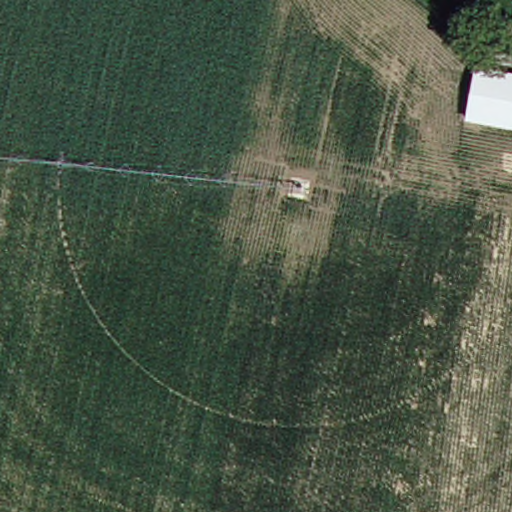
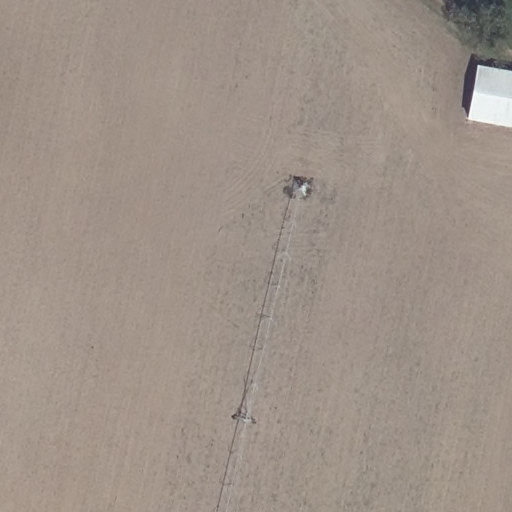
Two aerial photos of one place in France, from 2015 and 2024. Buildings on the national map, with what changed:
unchanged [(512,79),(512,132),(466,124),(476,73),(507,79),(512,79)]

